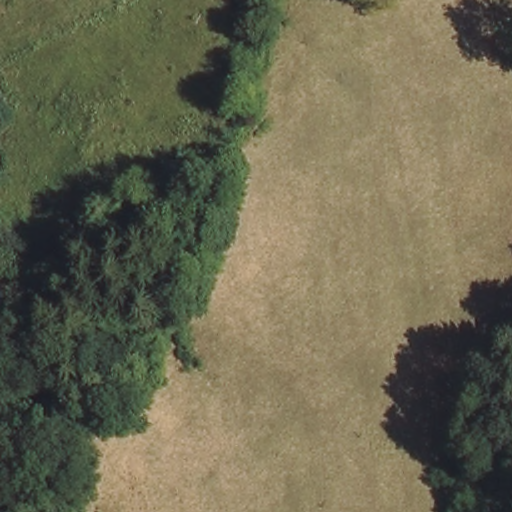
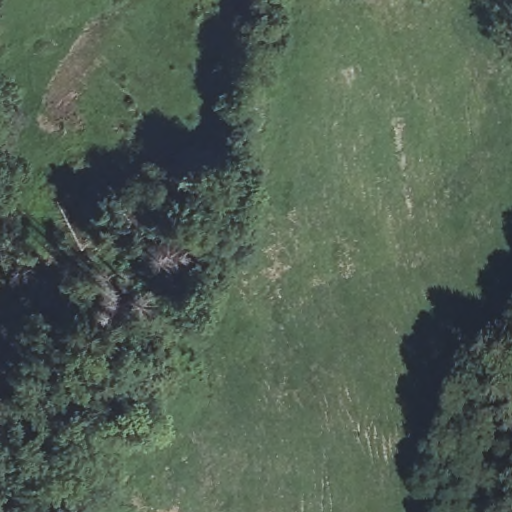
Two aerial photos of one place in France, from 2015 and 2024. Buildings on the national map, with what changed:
unchanged [(86,392),(68,435),(20,414),(39,371),(86,392)]
unchanged [(25,507),(0,496),(0,456),(3,448),(43,465),(25,507)]

